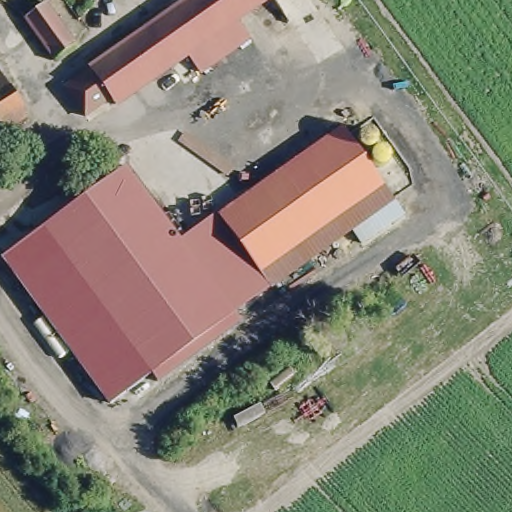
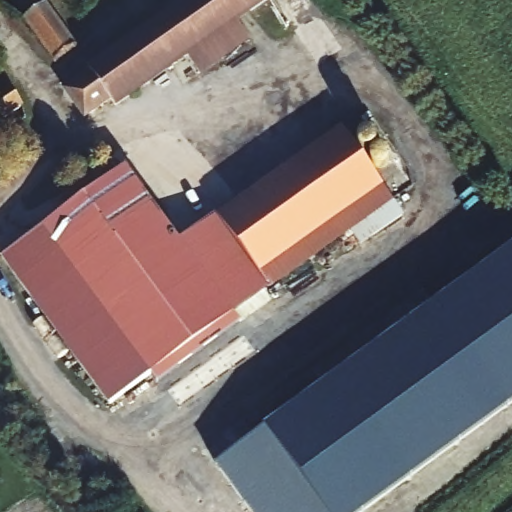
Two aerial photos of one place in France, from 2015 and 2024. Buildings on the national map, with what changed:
unchanged [(245,41),(196,76),(183,59),(112,106),(107,100),(82,119),(61,90),(87,71),(86,70),(186,0),(268,0),(233,25),(245,41)]
unchanged [(52,60),(23,19),(44,5),(72,46),(52,60)]
unchanged [(0,131),(0,80),(24,114),(0,131)]
unchanged [(347,131),(396,199),(273,288),(224,220),(347,131)]
unchanged [(129,160),(181,235),(237,313),(241,320),(156,378),(150,370),(128,385),(17,240),(129,160)]
unchanged [(215,209),(224,220),(273,288),(252,302),(237,313),(181,235),(193,225),(215,209)]
unchanged [(128,385),(109,399),(4,250),(17,240),(128,385)]
new [(512,247),(512,404),(363,512),(250,512),(215,464),(512,247)]

